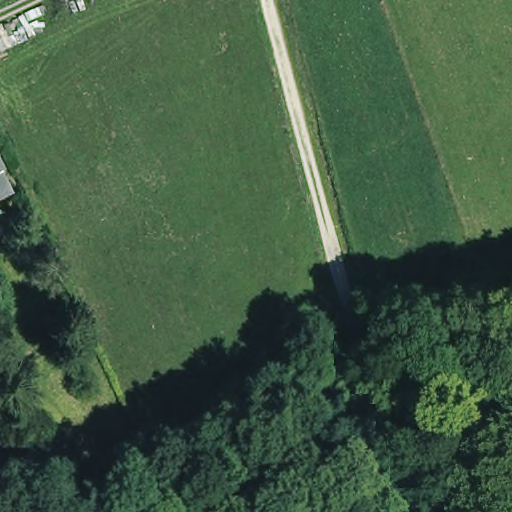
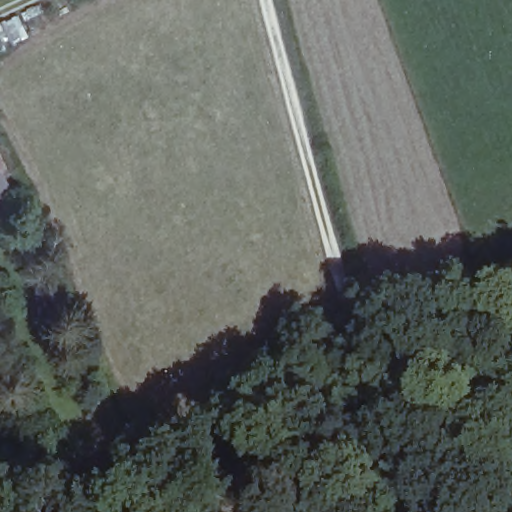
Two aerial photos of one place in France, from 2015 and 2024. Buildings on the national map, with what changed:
unchanged [(4,165),(0,167),(0,157),(4,165)]
unchanged [(8,187),(0,191),(0,171),(8,187)]

